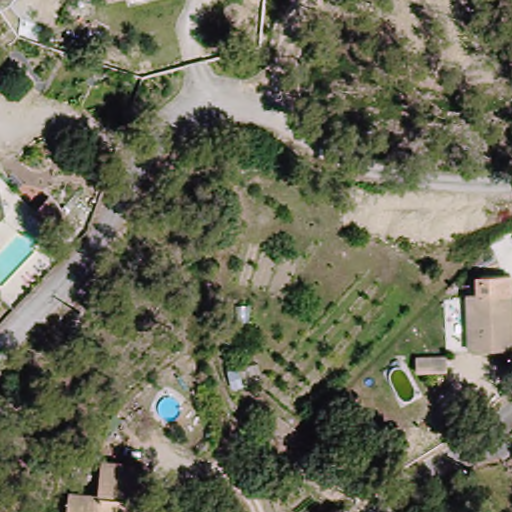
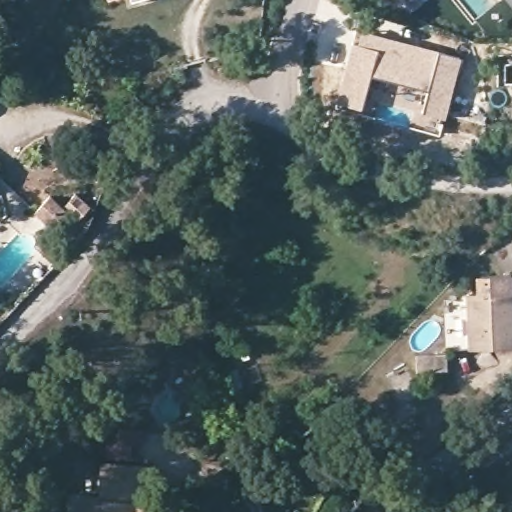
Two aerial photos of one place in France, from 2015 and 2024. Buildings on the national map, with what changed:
new [(508,0),(512,0),(512,5),(508,0)]
new [(361,110),(336,103),(353,44),(359,46),(362,33),(459,59),(443,118),(439,135),(361,110)]
unchanged [(48,196),(67,214),(54,227),(36,210),(48,196)]
unchanged [(466,293),(474,292),(472,275),(503,272),(509,343),(471,347),(466,293)]
unchanged [(440,360),(440,380),(412,380),(412,364),(440,360)]
unchanged [(98,495),(100,464),(148,467),(143,512),(71,512),(73,494),(98,495)]

